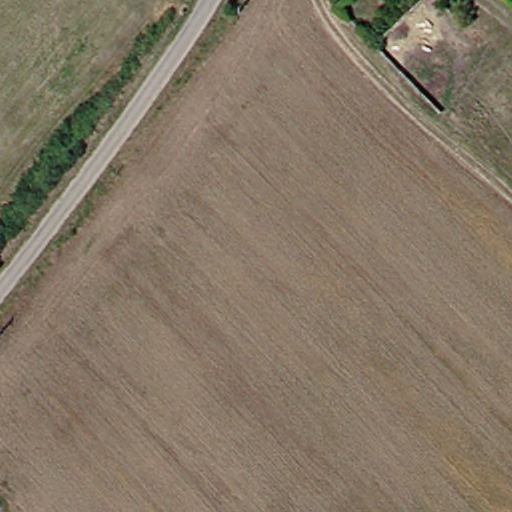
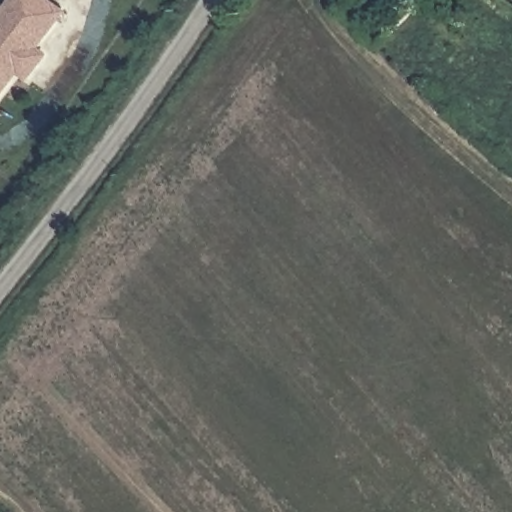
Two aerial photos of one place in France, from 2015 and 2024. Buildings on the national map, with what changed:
new [(52,0),(66,10),(39,46),(48,53),(27,82),(16,75),(0,97),(0,11),(9,0),(52,0)]

